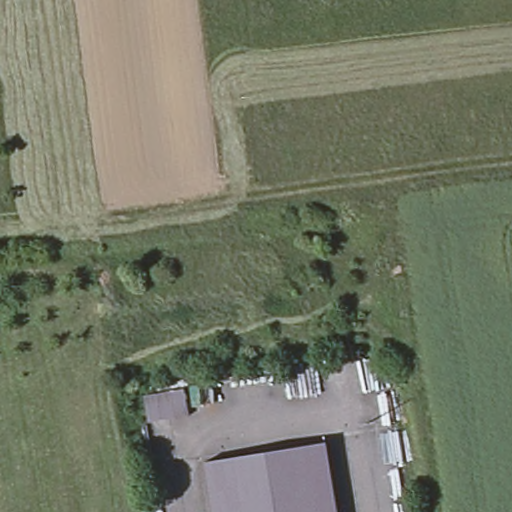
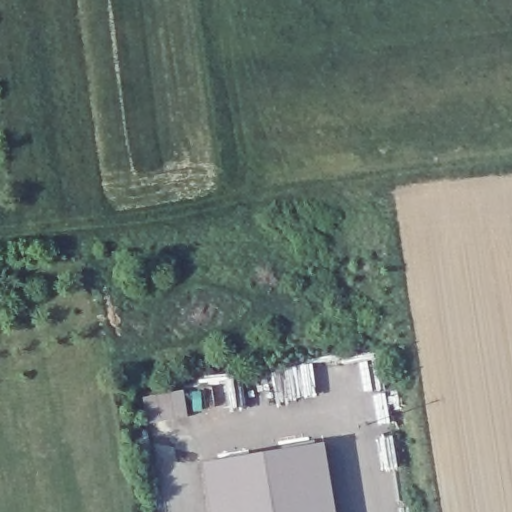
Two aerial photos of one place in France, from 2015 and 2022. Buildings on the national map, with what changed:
unchanged [(296,442),(321,438),(333,512),(309,512),(296,442)]
unchanged [(236,452),(296,442),(309,512),(246,512),(236,452)]
unchanged [(201,458),(236,452),(246,512),(210,512),(201,458)]

